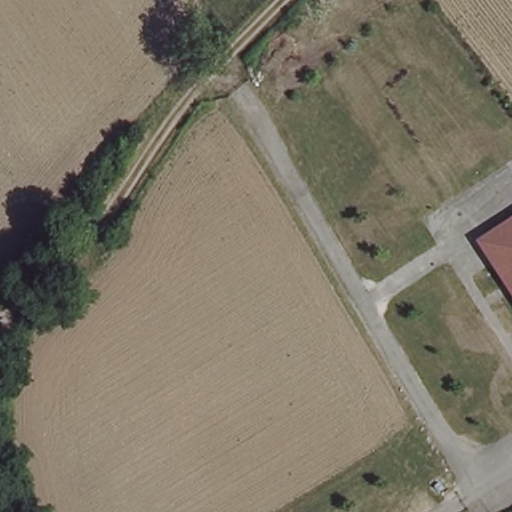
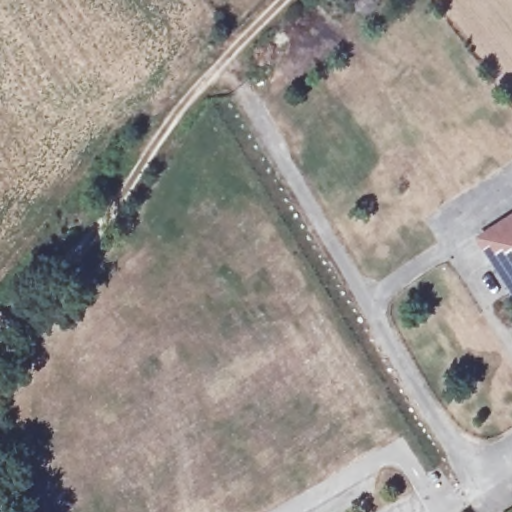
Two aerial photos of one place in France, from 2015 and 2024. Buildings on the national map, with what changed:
unchanged [(512,216),(512,293),(477,239),(512,216)]

